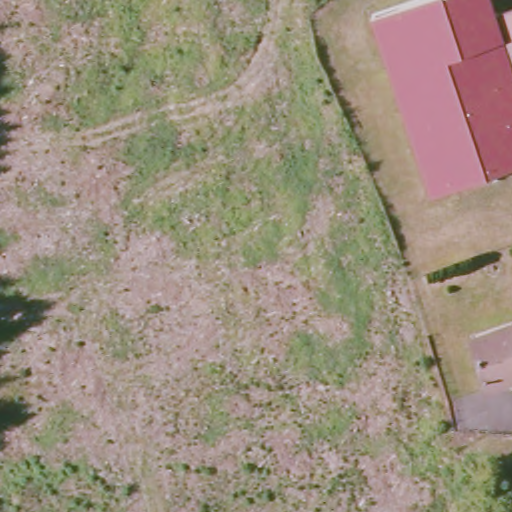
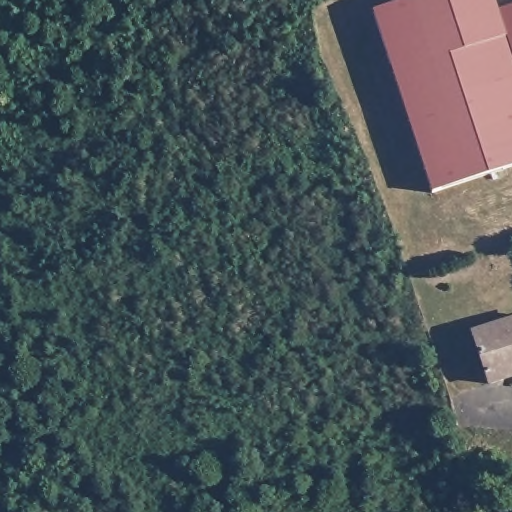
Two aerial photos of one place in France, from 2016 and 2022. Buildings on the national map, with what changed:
unchanged [(409,0),(494,0),(498,10),(512,6),(512,111),(415,142),(373,11),(409,0)]
unchanged [(415,142),(512,111),(512,166),(431,193),(415,142)]
unchanged [(512,320),(512,373),(485,382),(471,333),(512,320)]

